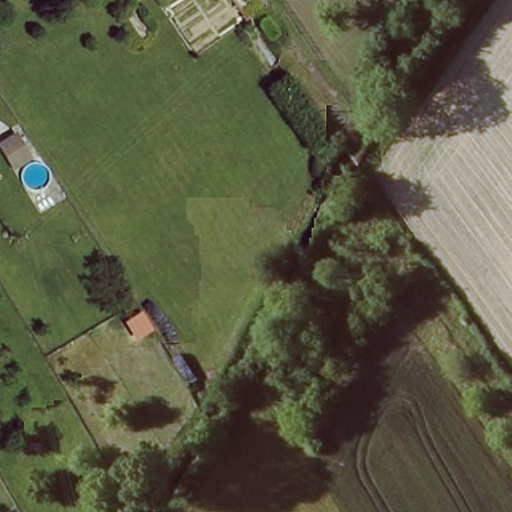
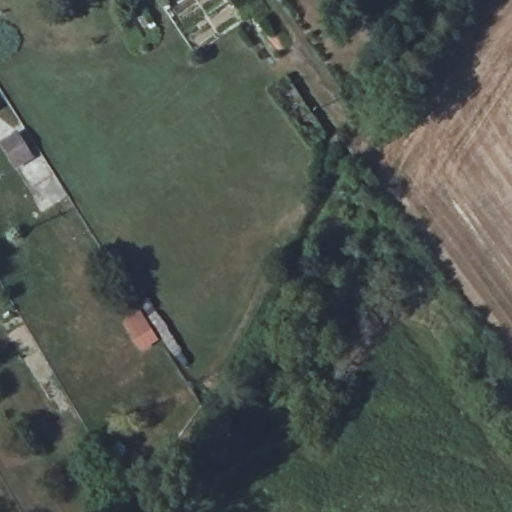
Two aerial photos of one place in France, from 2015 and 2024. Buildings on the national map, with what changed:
unchanged [(1,145),(21,133),(34,160),(15,170),(1,145)]

